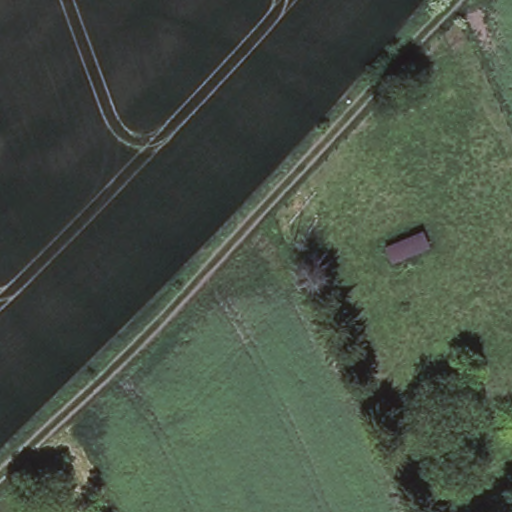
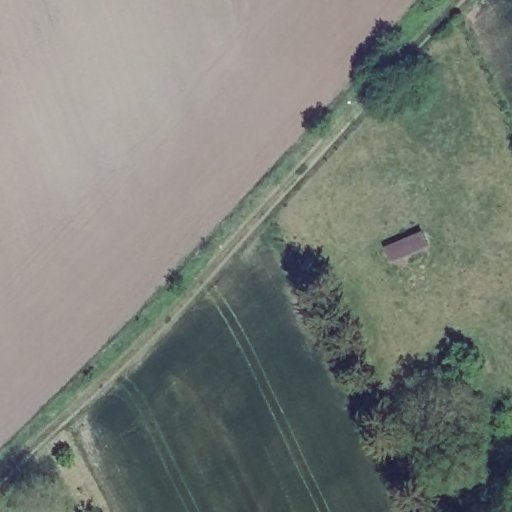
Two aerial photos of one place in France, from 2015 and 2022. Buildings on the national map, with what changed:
unchanged [(432,251),(395,264),(389,242),(424,229),(432,251)]

